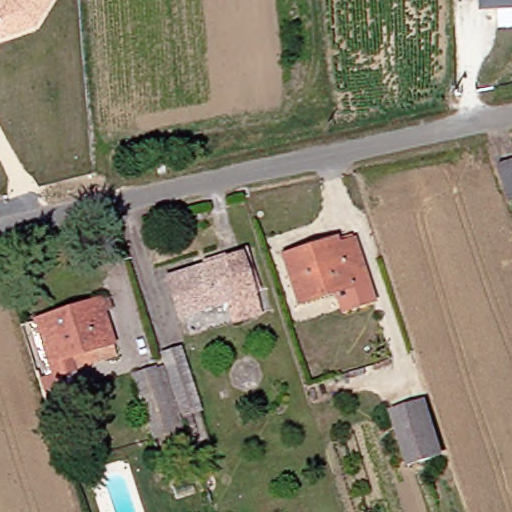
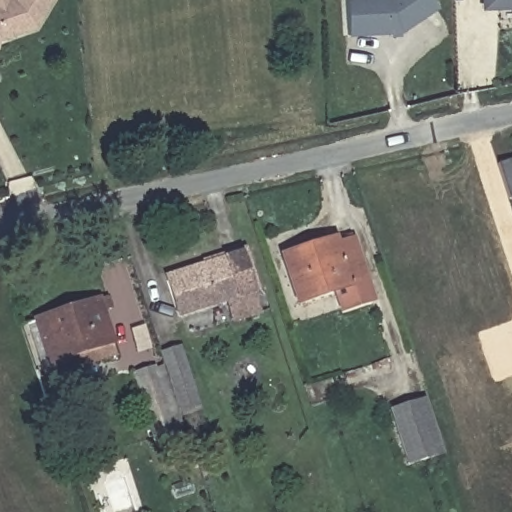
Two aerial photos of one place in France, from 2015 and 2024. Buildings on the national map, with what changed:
unchanged [(54,0),(36,28),(0,40),(0,0),(54,0)]
new [(403,32),(352,35),(350,0),(439,0),(442,6),(403,32)]
unchanged [(512,0),(512,8),(494,9),(477,11),(476,0),(512,0)]
unchanged [(512,191),(505,169),(512,167),(512,191)]
unchanged [(291,265),(345,246),(348,252),(365,247),(381,291),(308,318),(291,265)]
unchanged [(175,281),(247,258),(261,294),(185,318),(175,281)]
unchanged [(58,316),(117,295),(136,356),(112,362),(109,352),(94,355),(98,366),(75,374),(58,316)]
unchanged [(188,348),(208,409),(198,413),(174,352),(188,348)]
unchanged [(161,431),(141,375),(165,366),(185,424),(161,431)]
unchanged [(420,467),(402,412),(435,403),(453,456),(420,467)]

